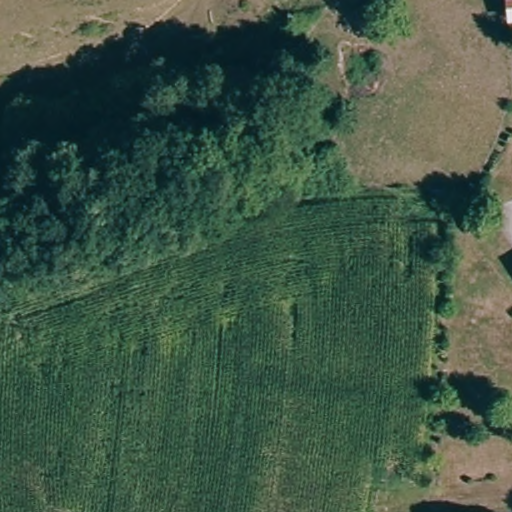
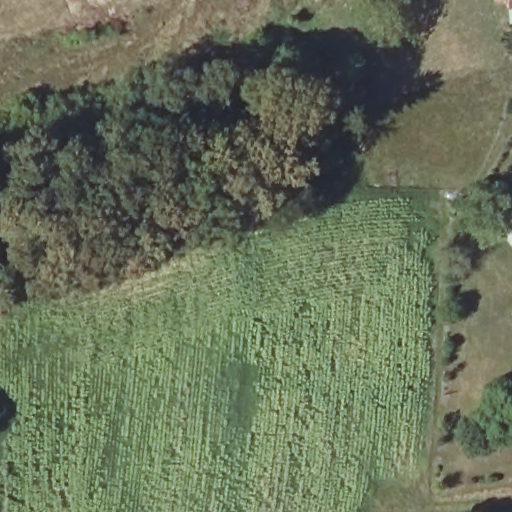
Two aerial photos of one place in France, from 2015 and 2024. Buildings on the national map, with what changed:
unchanged [(512,14),(502,13),(504,0),(512,0),(512,14)]

